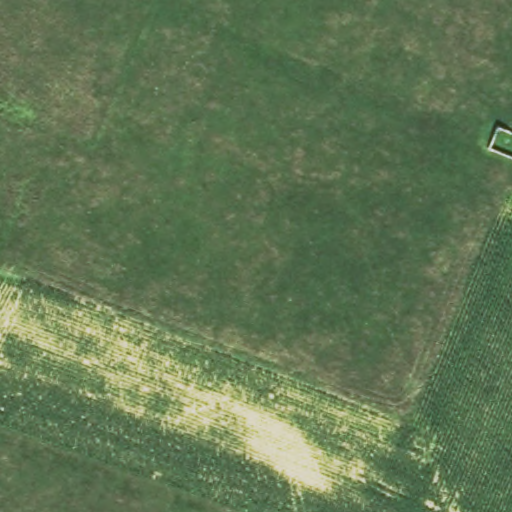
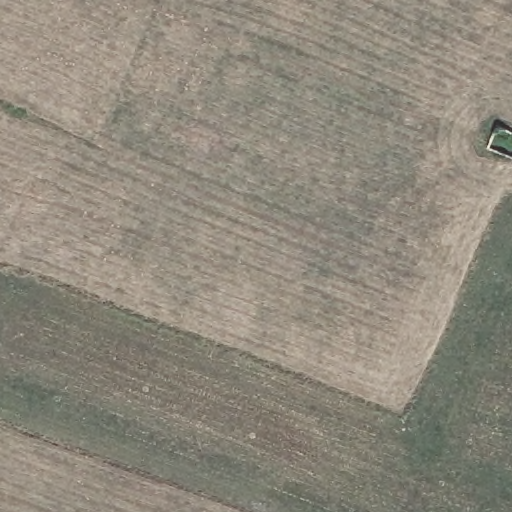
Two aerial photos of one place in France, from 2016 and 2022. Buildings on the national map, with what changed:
unchanged [(512,120),(512,158),(479,145),(495,113),(512,120)]

